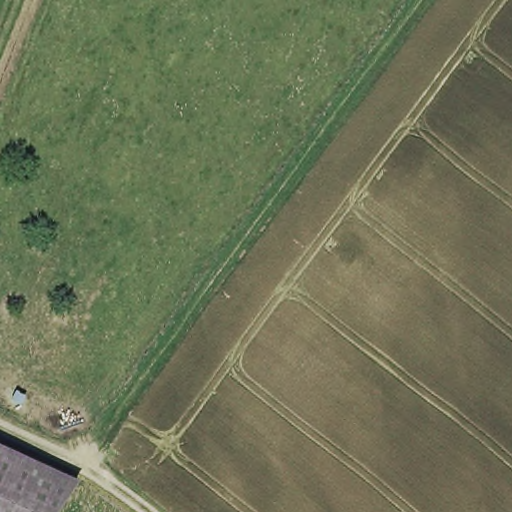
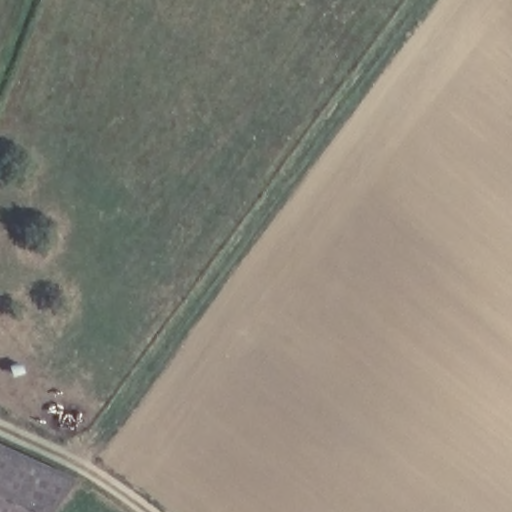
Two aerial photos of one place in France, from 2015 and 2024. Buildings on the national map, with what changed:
unchanged [(73,476),(46,512),(0,512),(0,444),(73,476)]

